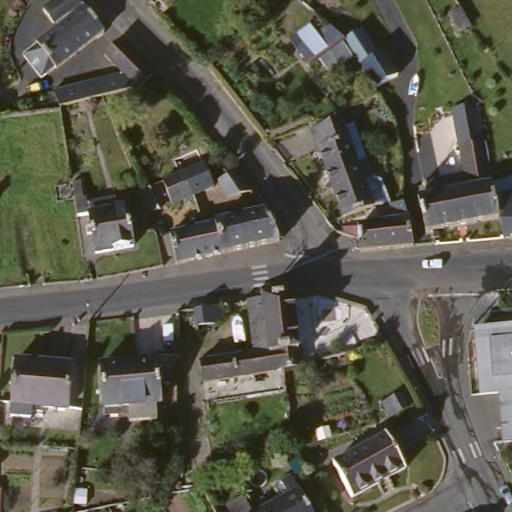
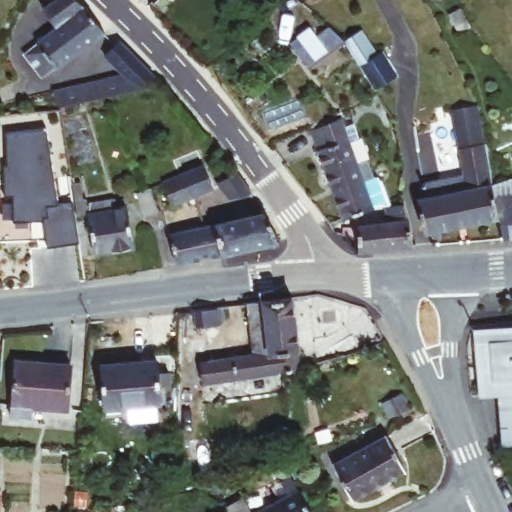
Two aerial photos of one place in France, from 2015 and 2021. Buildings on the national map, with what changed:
unchanged [(53,67),(44,75),(28,58),(58,29),(46,15),(61,0),(73,0),(102,31),(58,72),(53,67)]
unchanged [(386,81),(370,91),(342,45),(354,39),(366,60),(373,57),(386,81)]
unchanged [(99,105),(70,115),(66,94),(126,74),(112,56),(122,47),(126,43),(157,74),(139,90),(112,100),(99,105)]
unchanged [(316,43),(325,58),(306,73),(296,58),(316,43)]
unchanged [(487,124),(497,187),(502,222),(467,229),(460,183),(470,181),(463,124),(454,125),(454,115),(485,110),(487,124)]
unchanged [(450,126),(444,127),(442,116),(448,114),(450,126)]
unchanged [(323,150),(314,126),(338,116),(345,133),(353,129),(355,133),(367,168),(372,179),(368,182),(363,184),(371,210),(348,218),(325,150),(323,150)]
new [(45,129),(58,204),(71,202),(77,243),(47,247),(44,218),(14,219),(13,194),(4,193),(2,164),(8,163),(5,131),(45,129)]
unchanged [(158,186),(170,182),(199,172),(206,194),(190,199),(187,200),(177,204),(164,208),(159,210),(148,215),(143,215),(142,208),(139,197),(160,190),(158,186)]
unchanged [(243,193),(229,206),(212,188),(228,174),(243,193)]
unchanged [(467,229),(433,235),(427,204),(433,203),(432,189),(460,183),(467,229)]
unchanged [(512,201),(512,241),(507,242),(504,221),(502,202),(512,201)]
unchanged [(119,202),(120,208),(120,213),(131,212),(135,250),(99,255),(92,206),(109,203),(119,202)]
unchanged [(416,252),(362,258),(359,244),(358,233),(387,227),(385,213),(409,208),(416,252)]
unchanged [(271,212),(287,243),(229,257),(221,224),(271,212)]
unchanged [(179,236),(209,228),(221,224),(229,257),(185,268),(179,236)]
unchanged [(232,319),(234,359),(260,356),(256,315),(301,309),(305,357),(299,357),(302,375),(299,376),(214,389),(207,322),(232,319)]
unchanged [(497,393),(479,394),(477,329),(512,325),(512,441),(500,442),(497,393)]
unchanged [(105,356),(157,351),(159,417),(133,419),(132,403),(107,407),(105,356)]
unchanged [(16,424),(16,412),(18,364),(66,363),(65,409),(42,411),(42,424),(16,424)]
unchanged [(390,439),(406,468),(352,505),(336,474),(390,439)]
unchanged [(308,492),(317,512),(271,512),(308,492)]

